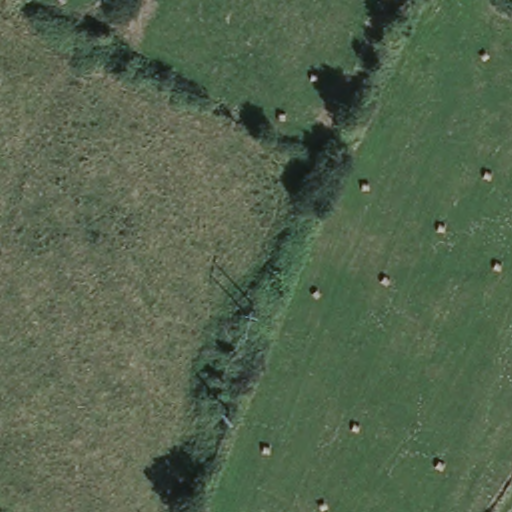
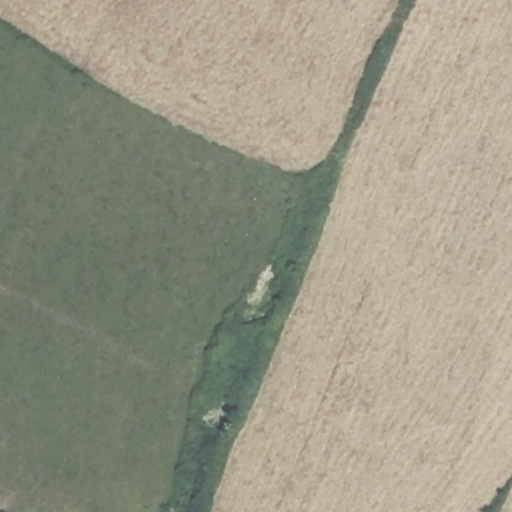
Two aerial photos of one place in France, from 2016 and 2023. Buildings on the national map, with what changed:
[]

